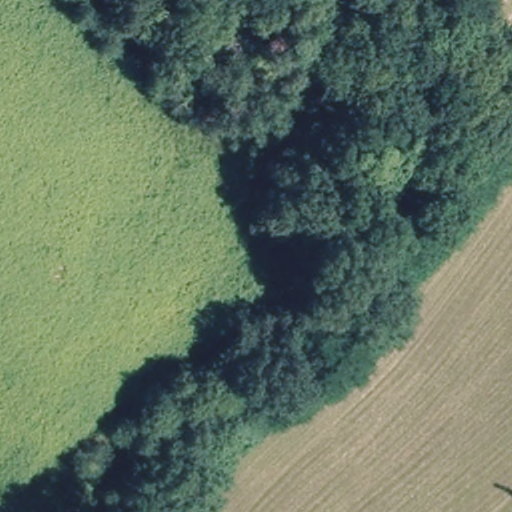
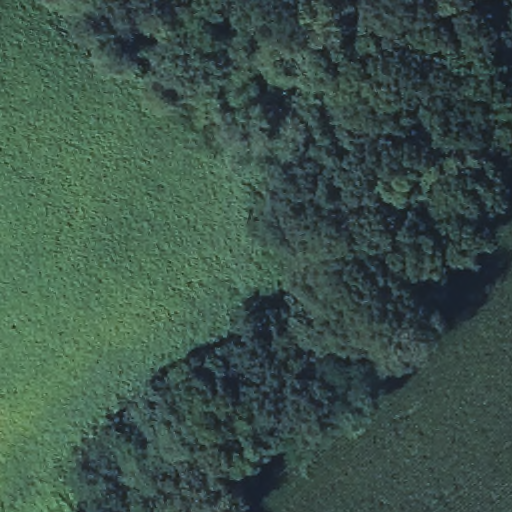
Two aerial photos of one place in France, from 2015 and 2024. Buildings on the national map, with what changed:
[]

